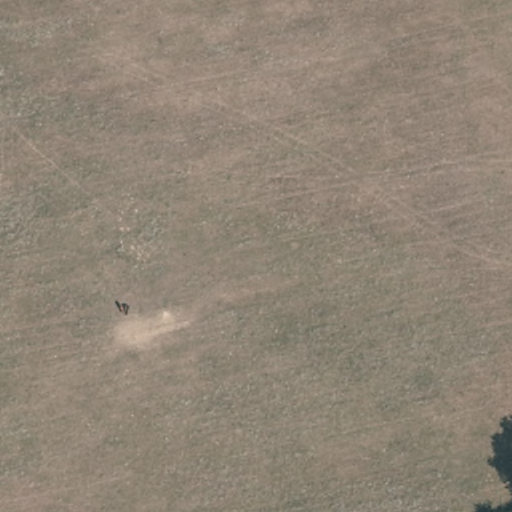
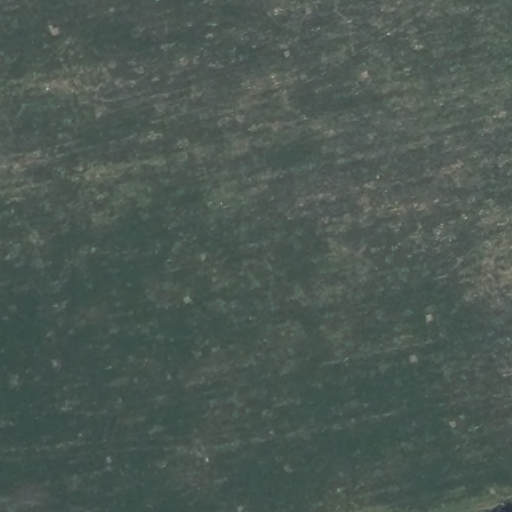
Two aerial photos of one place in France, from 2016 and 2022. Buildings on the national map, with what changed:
[]

